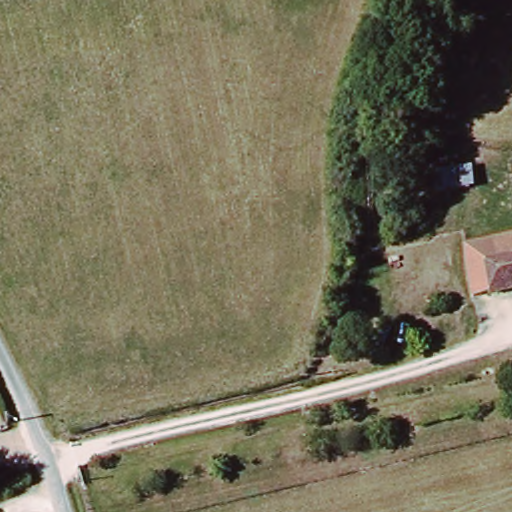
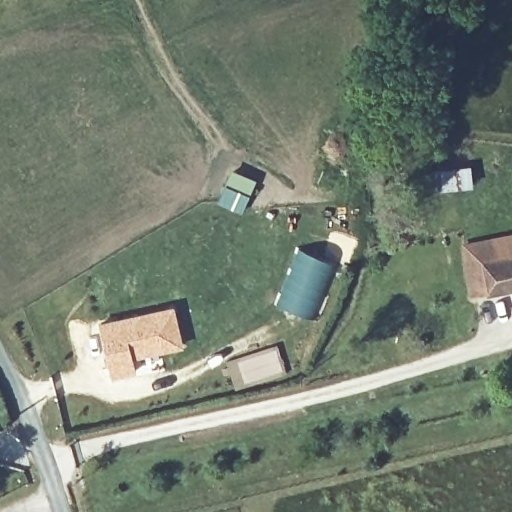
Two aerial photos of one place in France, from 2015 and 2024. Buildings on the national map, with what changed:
unchanged [(512,284),(469,293),(458,239),(512,228),(512,284)]
new [(292,247),(336,265),(313,320),(270,303),(292,247)]
new [(168,308),(177,345),(128,356),(132,371),(107,376),(95,325),(168,308)]

